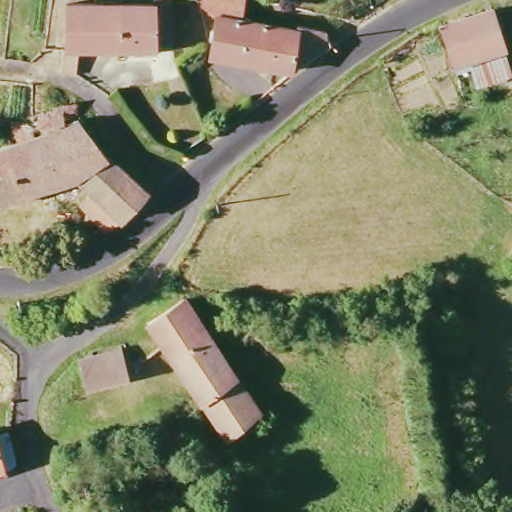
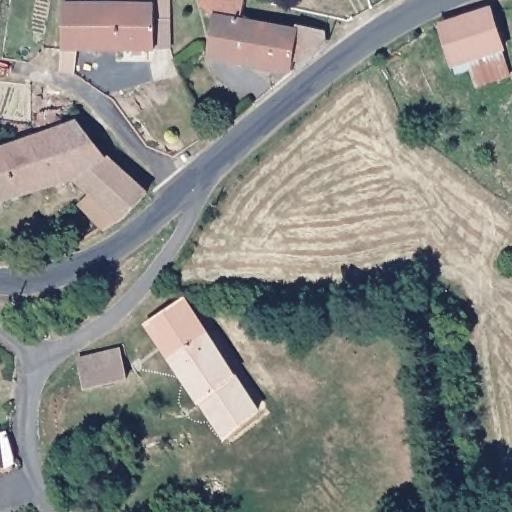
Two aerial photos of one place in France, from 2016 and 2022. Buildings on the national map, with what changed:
unchanged [(63,50),(64,5),(154,5),(155,0),(169,0),(170,47),(153,47),(152,51),(75,51),(76,73),(57,71),(58,50),(63,50)]
unchanged [(300,30),(300,26),(325,31),(326,46),(295,71),(209,59),(219,18),(200,3),(201,0),(242,0),(239,20),(300,30)]
unchanged [(510,70),(474,81),(465,55),(453,59),(441,20),(443,19),(492,3),(510,70)]
unchanged [(103,230),(81,205),(92,197),(79,180),(0,204),(0,149),(35,136),(30,119),(73,106),(78,120),(111,165),(148,190),(108,228),(103,230)]
unchanged [(257,411),(225,437),(150,325),(184,299),(257,411)]
unchanged [(121,352),(126,380),(86,388),(80,360),(121,352)]
unchanged [(5,425),(8,438),(16,467),(0,473),(0,429),(5,425)]

